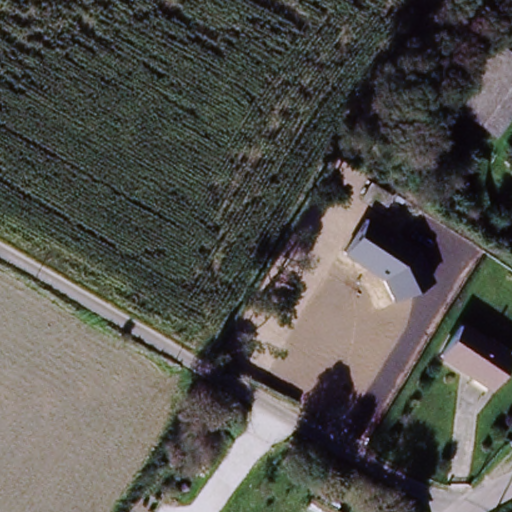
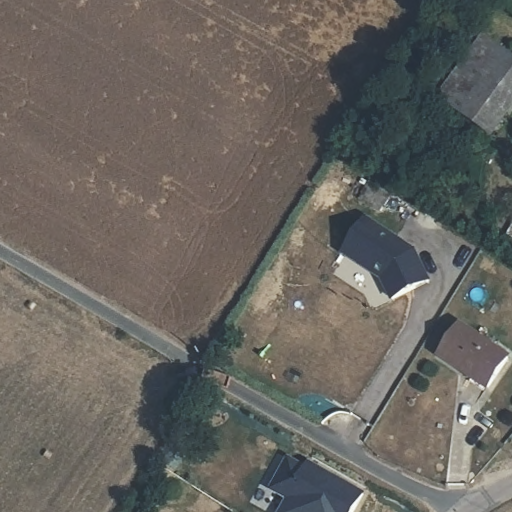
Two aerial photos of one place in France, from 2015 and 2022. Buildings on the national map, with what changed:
unchanged [(493,138),(436,99),(481,33),(512,55),(512,110),(493,138)]
unchanged [(382,279),(341,252),(365,216),(415,249),(430,283),(390,299),(382,279)]
unchanged [(491,386),(435,360),(454,326),(508,352),(491,386)]
new [(272,490),(289,459),(306,469),(309,464),(362,495),(353,512),(282,512),(288,500),(272,490)]

